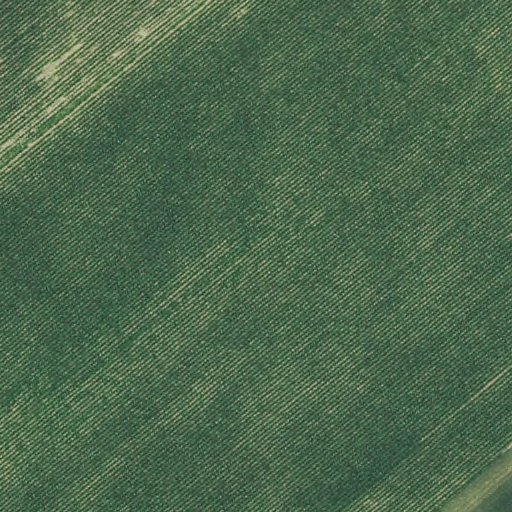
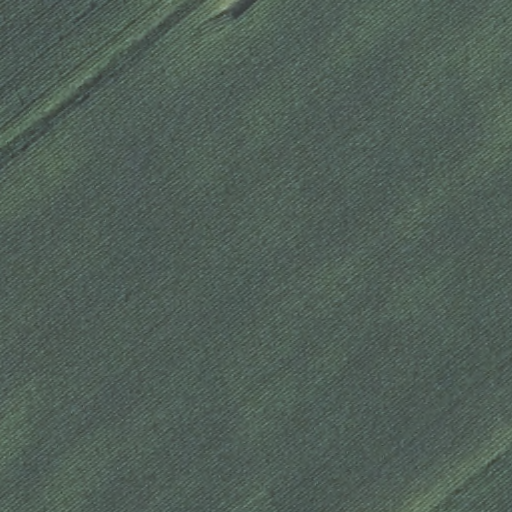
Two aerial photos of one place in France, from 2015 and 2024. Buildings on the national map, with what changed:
[]

